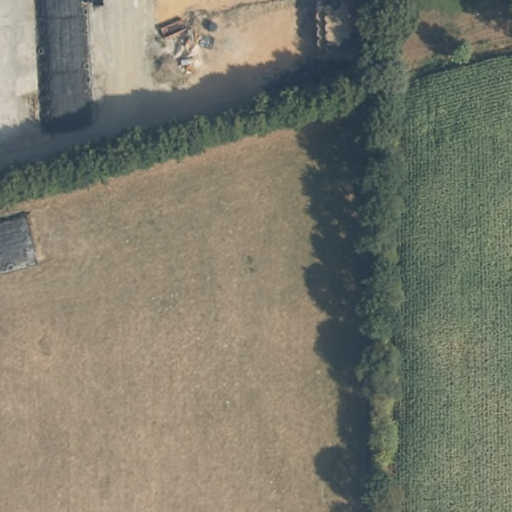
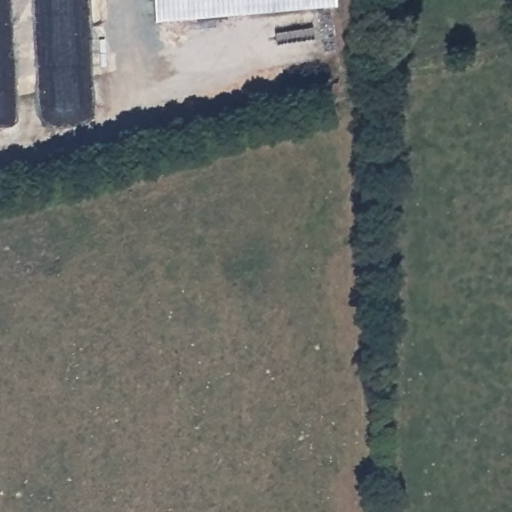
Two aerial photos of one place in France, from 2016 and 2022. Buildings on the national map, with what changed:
new [(334,7),(152,22),(151,0),(334,0),(334,7)]

